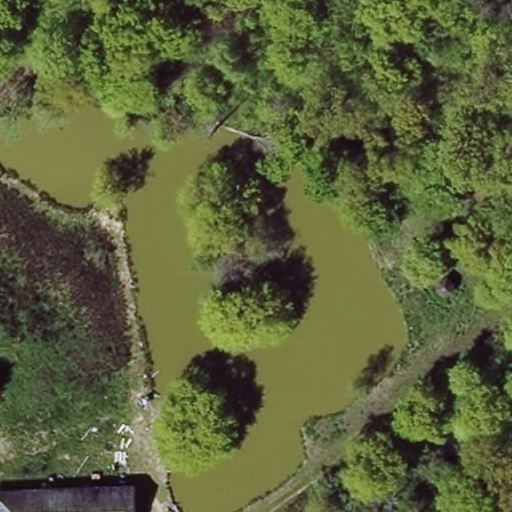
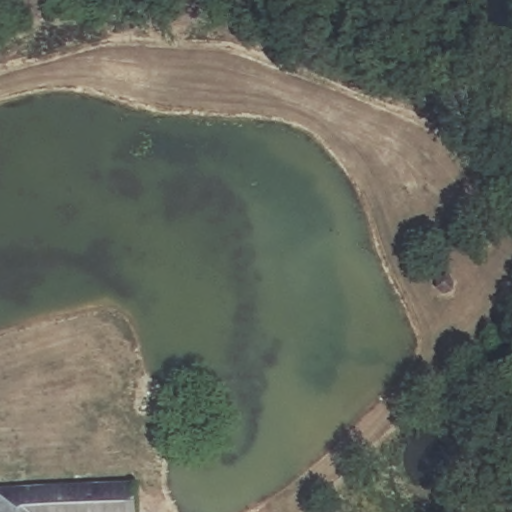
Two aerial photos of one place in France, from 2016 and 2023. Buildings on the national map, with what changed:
unchanged [(141,512),(38,512),(37,488),(139,477),(141,512)]
unchanged [(38,512),(0,512),(0,491),(37,488),(38,512)]

